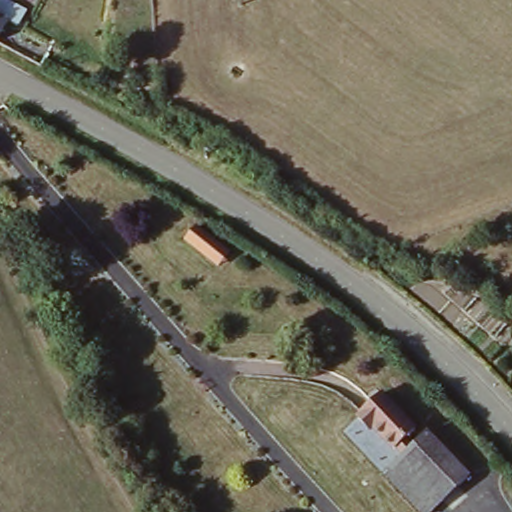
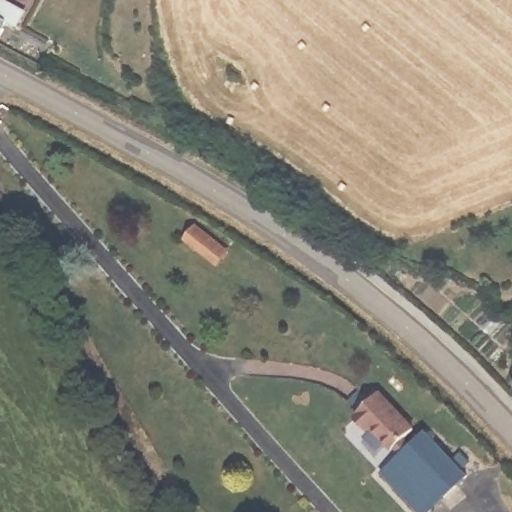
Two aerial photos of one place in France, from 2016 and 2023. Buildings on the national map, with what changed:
unchanged [(0,21),(0,15),(2,16),(0,21)]
unchanged [(217,268),(180,241),(194,224),(229,252),(217,268)]
unchanged [(405,439),(414,447),(424,437),(468,477),(433,512),(427,512),(388,477),(407,458),(398,449),(391,456),(368,434),(363,440),(351,428),(380,395),(415,427),(405,439)]

